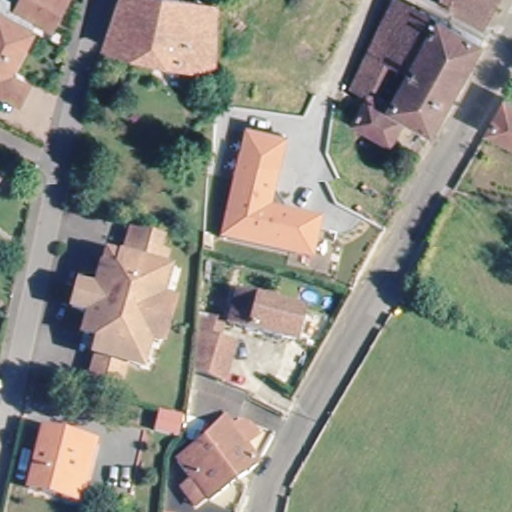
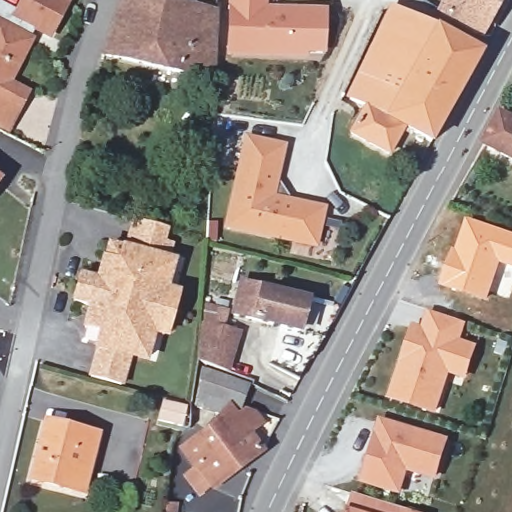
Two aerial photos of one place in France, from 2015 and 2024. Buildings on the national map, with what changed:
unchanged [(37,27),(31,39),(10,81),(27,90),(17,109),(0,99),(0,8),(13,15),(20,0),(67,0),(51,34),(37,27)]
unchanged [(164,0),(189,6),(186,71),(97,52),(115,0),(164,0)]
new [(307,59),(226,55),(228,0),(267,0),(267,6),(326,10),(326,55),(307,54),(307,59)]
demolished [(367,1),(368,0),(384,0),(380,7),(367,1)]
unchanged [(436,7),(440,0),(493,0),(476,32),(436,7)]
unchanged [(362,102),(347,94),(388,5),(424,17),(475,50),(426,137),(419,135),(417,139),(410,134),(411,130),(400,123),(385,148),(348,129),(362,102)]
unchanged [(189,6),(212,8),(209,76),(186,71),(189,6)]
new [(10,132),(0,127),(0,99),(17,109),(10,132)]
unchanged [(512,123),(512,162),(479,146),(496,116),(512,123)]
unchanged [(312,246),(226,224),(247,137),(283,146),(276,176),(291,202),(322,209),(312,246)]
unchanged [(80,330),(97,258),(101,245),(118,250),(127,214),(160,222),(150,257),(167,262),(142,361),(125,357),(116,388),(85,380),(92,347),(76,343),(80,330)]
new [(512,232),(512,266),(501,262),(487,300),(439,283),(466,216),(512,232)]
unchanged [(300,321),(235,307),(242,276),(307,291),(300,321)]
unchanged [(201,298),(230,307),(226,322),(241,327),(227,366),(198,355),(201,298)]
new [(450,375),(437,414),(386,398),(412,323),(422,327),(427,311),(467,323),(462,340),(477,346),(467,380),(450,375)]
unchanged [(183,466),(194,457),(178,438),(186,421),(191,420),(200,362),(246,378),(230,402),(261,442),(212,478),(199,488),(183,466)]
new [(437,480),(408,472),(401,495),(360,483),(380,417),(450,439),(437,480)]
unchanged [(66,490),(27,480),(40,421),(92,432),(87,454),(79,492),(66,490)]
new [(348,510),(353,493),(416,512),(347,512),(348,510)]
unchanged [(162,498),(174,501),(169,512),(163,512),(159,511),(162,498)]

